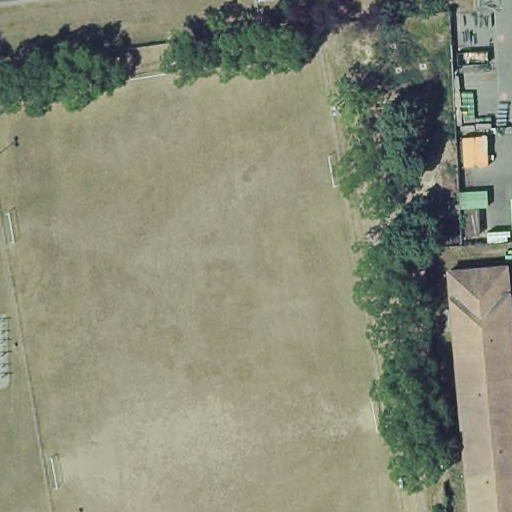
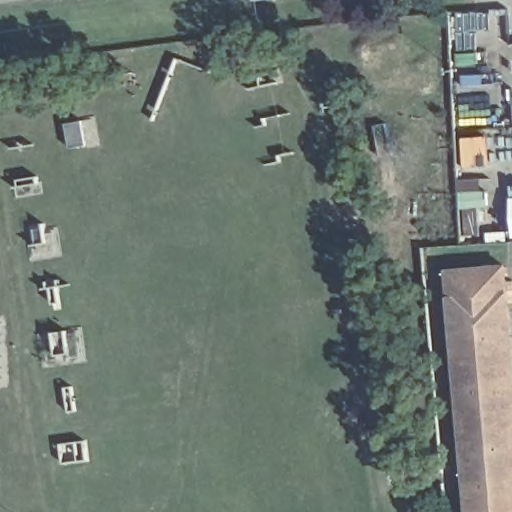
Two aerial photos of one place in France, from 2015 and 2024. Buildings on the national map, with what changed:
unchanged [(505,200),(512,200),(512,241),(507,241),(505,200)]
unchanged [(481,207),(482,234),(468,235),(466,207),(481,207)]
unchanged [(512,396),(512,512),(464,512),(442,271),(500,266),(512,396)]

